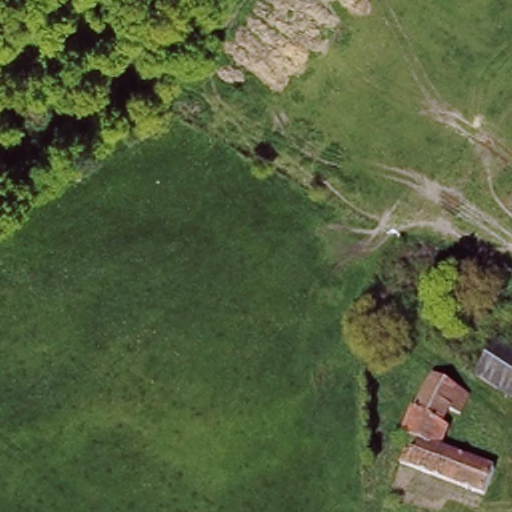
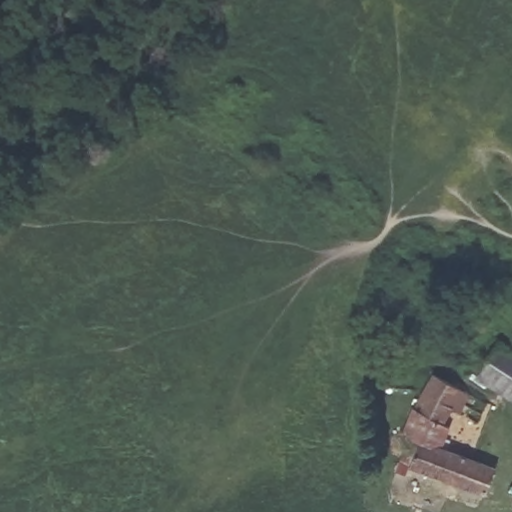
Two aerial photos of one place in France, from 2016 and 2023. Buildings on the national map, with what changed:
unchanged [(477,372),(499,336),(512,345),(512,396),(477,372)]
unchanged [(401,432),(415,409),(409,406),(420,387),(425,390),(435,374),(478,397),(467,417),(457,412),(452,422),(462,427),(452,444),(500,469),(485,496),(407,454),(415,439),(401,432)]

